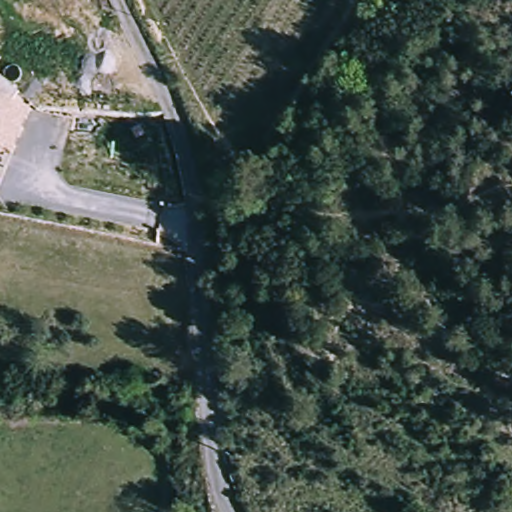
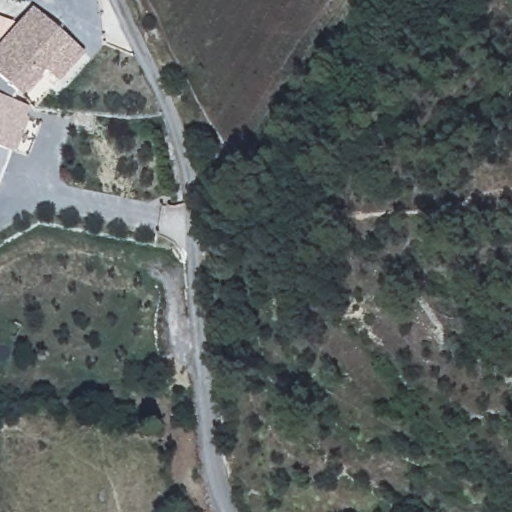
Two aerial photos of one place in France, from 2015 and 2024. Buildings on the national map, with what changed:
new [(85,53),(59,83),(47,71),(24,97),(33,104),(30,110),(12,103),(16,94),(0,79),(0,47),(35,7),(85,53)]
unchanged [(0,185),(0,79),(16,94),(12,103),(30,110),(13,156),(0,185)]

